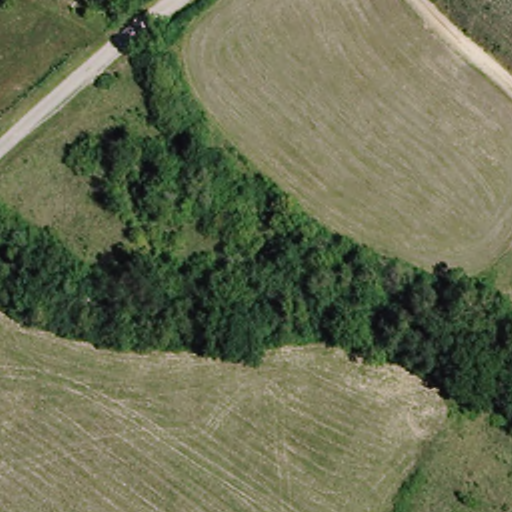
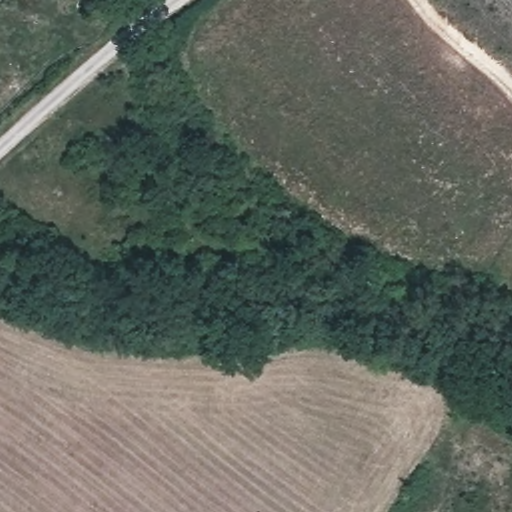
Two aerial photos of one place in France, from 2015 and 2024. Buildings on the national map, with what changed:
[]

